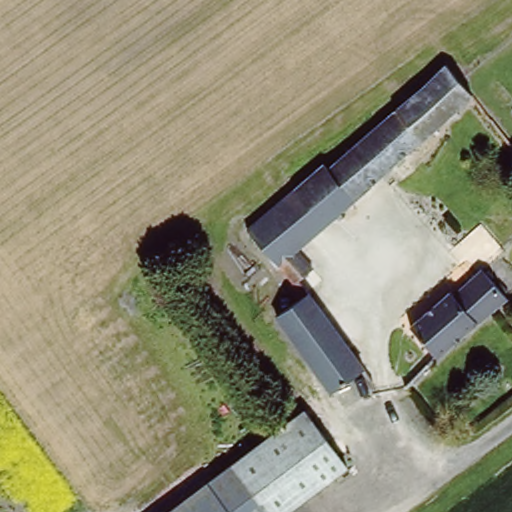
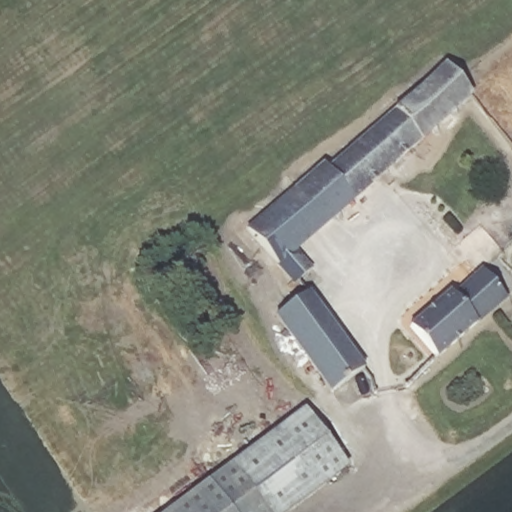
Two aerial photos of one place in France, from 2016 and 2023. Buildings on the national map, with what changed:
unchanged [(317,157),(322,163),(447,58),(477,93),(297,244),(309,261),(296,275),(302,283),(289,293),(280,280),(287,275),(244,220),(317,157)]
unchanged [(437,354),(419,331),(412,323),(485,265),(488,268),(510,295),(437,354)]
unchanged [(302,283),(360,360),(328,385),(272,307),(289,293),(302,283)]
unchanged [(271,512),(235,464),(302,412),(344,464),(280,512),(271,512)]
unchanged [(271,512),(167,512),(235,464),(271,512)]

